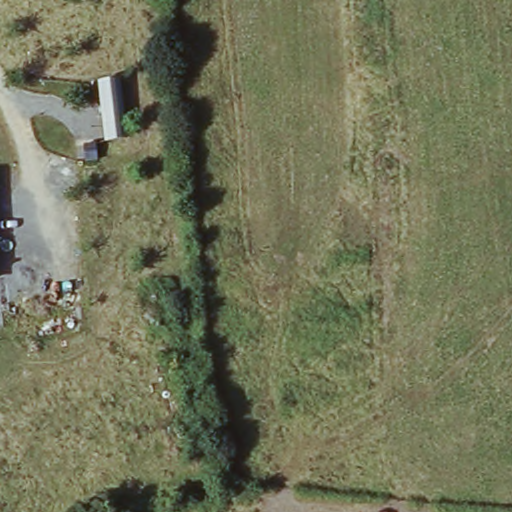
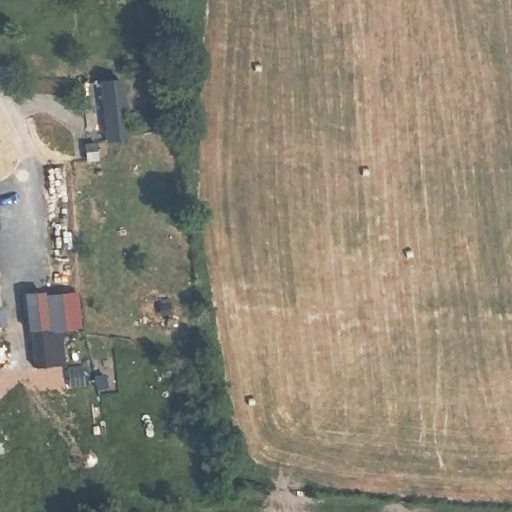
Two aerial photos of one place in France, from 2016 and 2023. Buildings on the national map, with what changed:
unchanged [(120,78),(126,137),(104,139),(99,81),(120,78)]
new [(47,295),(47,298),(79,294),(82,332),(50,337),(50,334),(26,336),(23,297),(47,295)]

